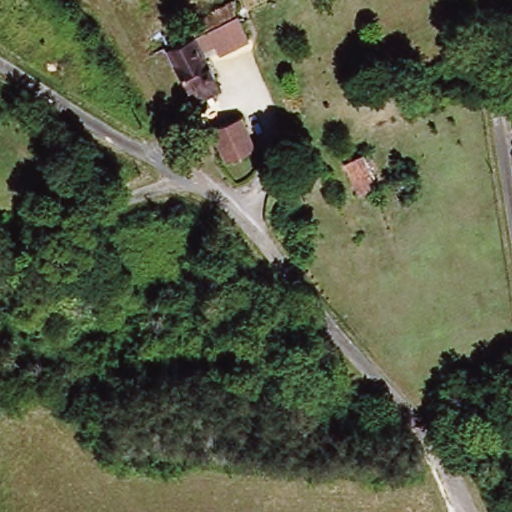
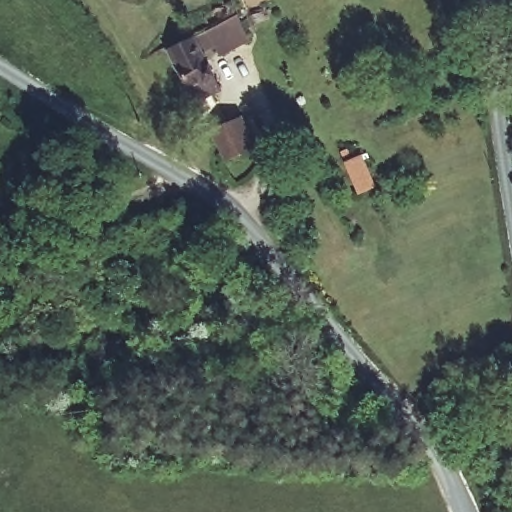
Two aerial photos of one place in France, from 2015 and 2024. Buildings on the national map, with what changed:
unchanged [(192,50),(184,36),(242,6),(242,7),(242,24),(197,46),(223,90),(202,103),(196,105),(172,60),(190,50),(192,50)]
unchanged [(257,120),(268,152),(231,166),(213,136),(257,120)]

